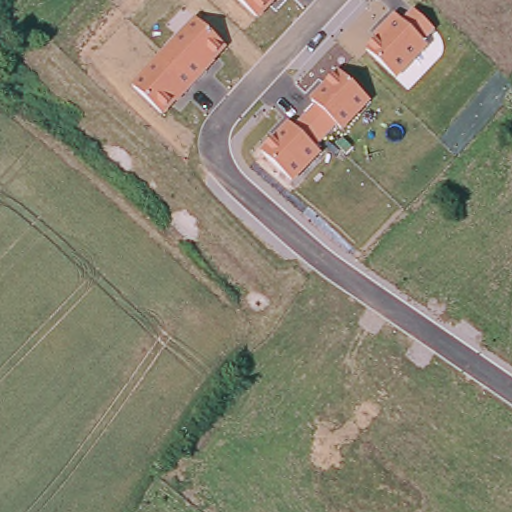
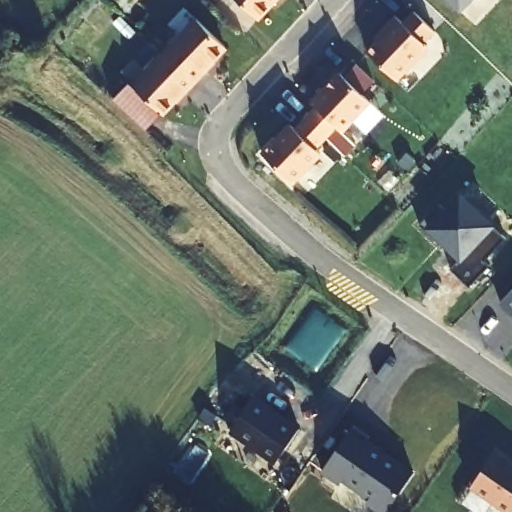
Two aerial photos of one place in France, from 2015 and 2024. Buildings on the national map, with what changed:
unchanged [(259,20),(238,0),(279,0),(259,20)]
new [(446,0),(474,0),(461,14),(446,0)]
unchanged [(402,22),(414,11),(436,33),(426,45),(430,49),(397,81),(366,52),(376,40),(373,38),(394,16),(402,22)]
unchanged [(164,116),(133,86),(196,20),(228,50),(164,116)]
unchanged [(294,127),(315,104),(311,100),(339,71),(372,104),(344,132),(339,129),(318,150),(322,155),(294,183),(261,151),(289,122),(294,127)]
new [(471,286),(451,268),(459,260),(426,230),(420,224),(439,204),(444,208),(460,191),(497,225),(507,236),(484,261),(489,265),(471,286)]
new [(499,303),(512,290),(512,315),(499,303)]
new [(256,393),(274,405),(273,406),(301,425),(278,460),(231,430),(256,393)]
new [(388,512),(379,512),(322,472),(353,428),(416,471),(388,512)]
new [(506,512),(469,489),(496,450),(512,461),(512,512),(506,512)]

